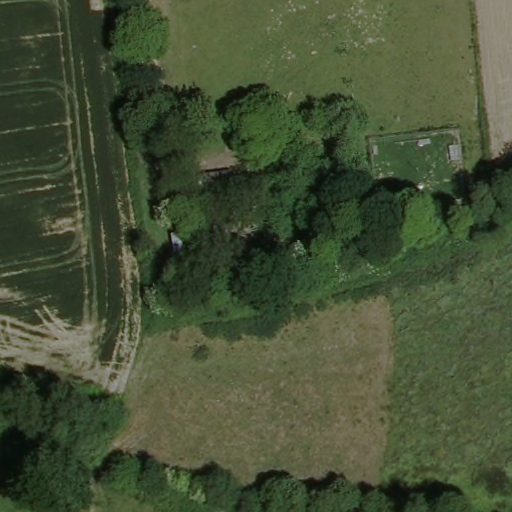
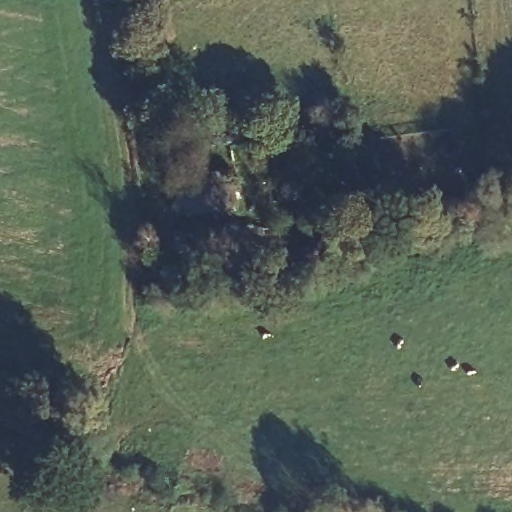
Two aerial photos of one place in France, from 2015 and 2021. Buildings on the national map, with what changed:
unchanged [(242,219),(181,231),(173,183),(236,170),(242,219)]

